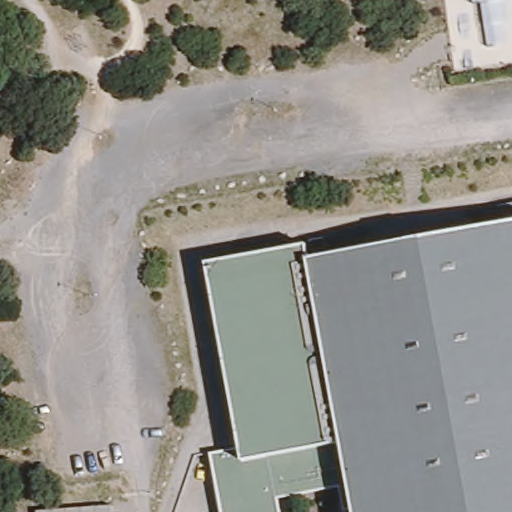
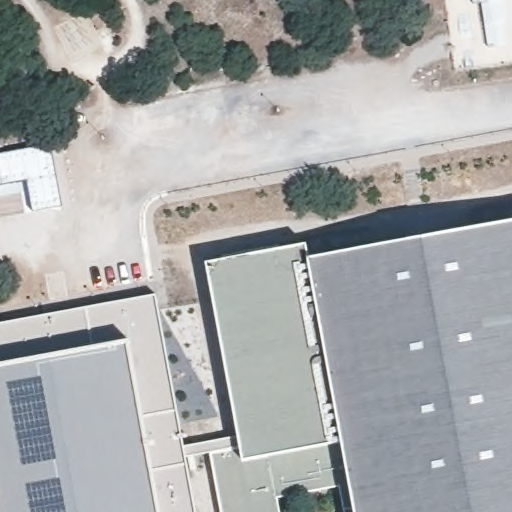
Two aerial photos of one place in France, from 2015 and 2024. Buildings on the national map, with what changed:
new [(49,145),(62,206),(28,211),(24,191),(0,196),(0,153),(49,145)]
unchanged [(240,442),(207,262),(307,242),(331,236),(362,230),(369,240),(476,221),(479,209),(501,205),(512,204),(512,512),(343,512),(339,486),(277,498),(279,512),(221,512),(211,453),(240,442)]
new [(195,512),(0,512),(0,324),(157,295),(195,512)]

